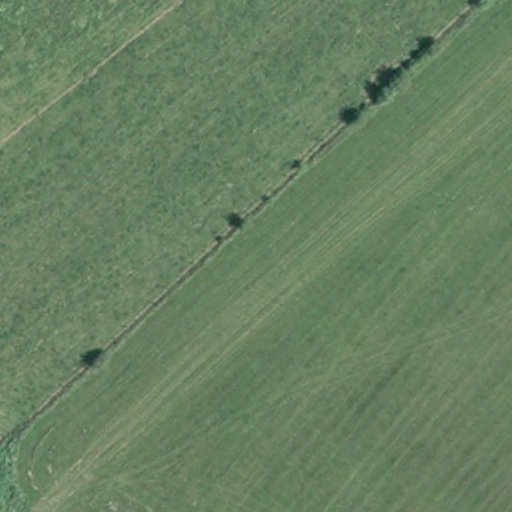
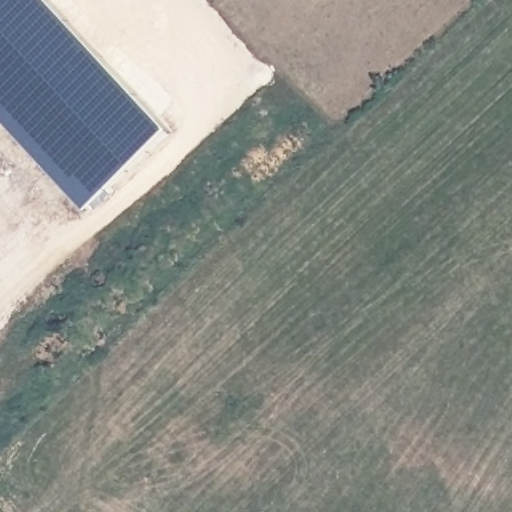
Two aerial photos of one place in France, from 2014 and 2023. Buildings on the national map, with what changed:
new [(170,131),(83,211),(0,122),(0,0),(50,0),(170,131)]

